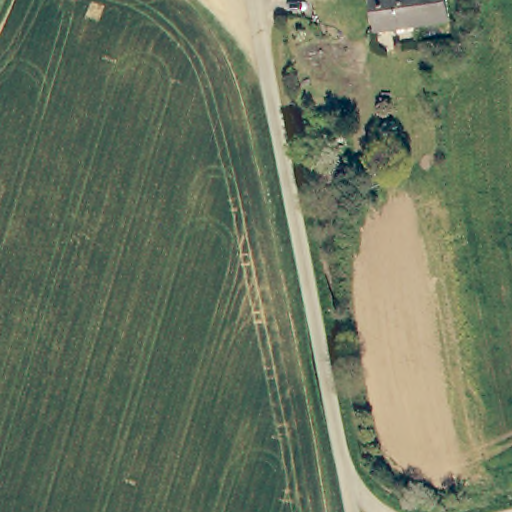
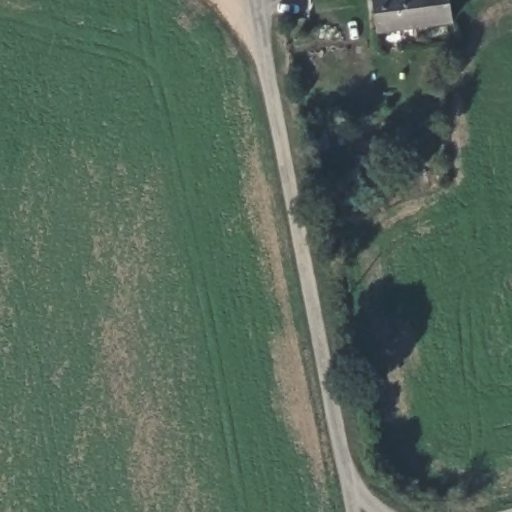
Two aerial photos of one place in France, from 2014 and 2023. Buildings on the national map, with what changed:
unchanged [(419,41),(380,46),(375,0),(452,0),(454,20),(416,26),(419,41)]

